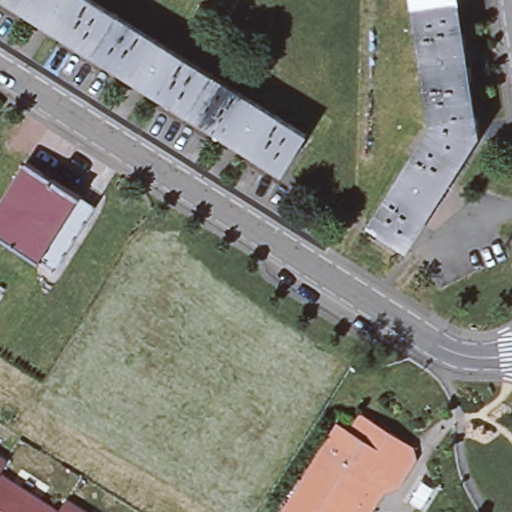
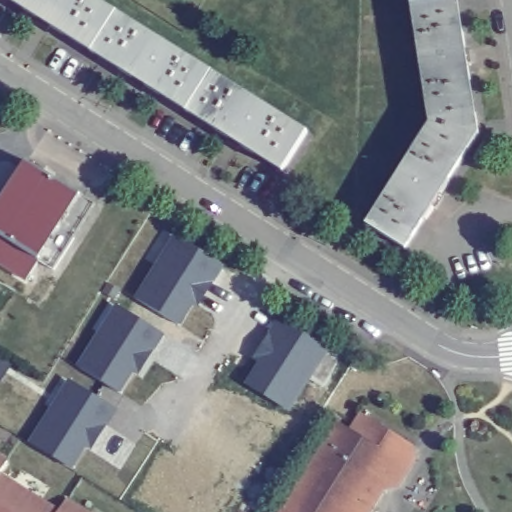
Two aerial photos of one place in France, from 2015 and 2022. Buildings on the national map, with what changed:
unchanged [(38,18),(10,0),(95,0),(116,13),(92,51),(51,26),(48,30),(36,22),(38,18)]
unchanged [(456,0),(457,2),(412,9),(410,0),(456,0)]
unchanged [(471,64),(467,65),(472,98),(427,105),(412,9),(457,2),(464,51),(469,50),(471,64)]
unchanged [(131,81),(133,78),(92,51),(116,13),(211,73),(187,111),(146,86),(143,90),(131,81)]
unchanged [(226,141),(229,138),(187,111),(211,73),(307,133),(283,172),(241,145),(238,150),(226,141)]
unchanged [(477,135),(457,166),(419,142),(430,125),(427,105),(472,98),(477,135)]
unchanged [(436,210),(432,207),(405,249),(367,224),(419,142),(457,166),(440,195),(444,197),(436,210)]
unchanged [(41,263),(0,236),(0,203),(27,161),(83,197),(96,206),(74,239),(54,271),(41,263)]
new [(171,238),(222,267),(199,308),(194,304),(180,325),(134,297),(171,238)]
new [(146,347),(117,393),(78,368),(108,322),(116,309),(126,314),(161,337),(152,351),(146,347)]
new [(326,352),(291,412),(243,383),(258,361),(253,358),(277,322),(326,352)]
new [(137,375),(131,371),(146,347),(152,351),(137,375)]
new [(10,365),(0,383),(0,359),(10,365)]
new [(100,422),(71,468),(33,443),(62,396),(71,383),(80,389),(115,412),(106,426),(100,422)]
unchanged [(306,473),(338,423),(350,430),(360,413),(402,440),(413,446),(416,459),(398,488),(384,491),(371,512),(282,512),(306,473)]
new [(91,450),(85,446),(100,422),(106,426),(91,450)]
unchanged [(6,461),(7,462),(0,472),(0,457),(6,461)]
unchanged [(14,484),(24,490),(57,511),(58,512),(0,512),(0,475),(14,484)]
unchanged [(58,512),(66,500),(85,512),(58,512)]

